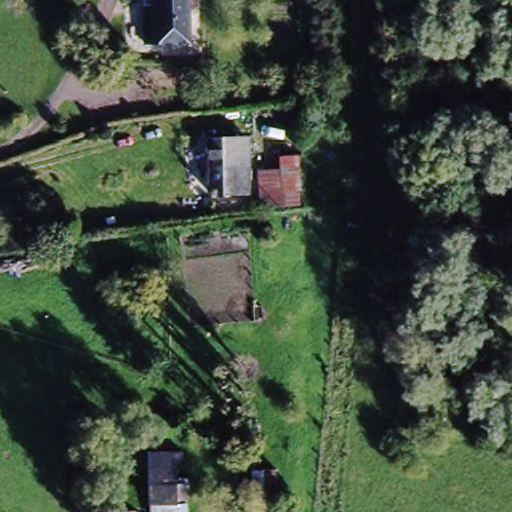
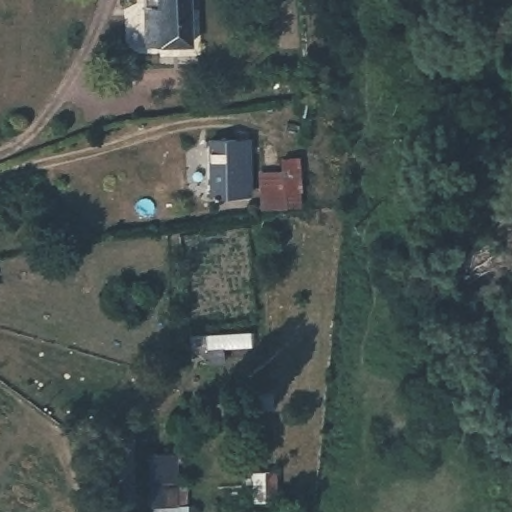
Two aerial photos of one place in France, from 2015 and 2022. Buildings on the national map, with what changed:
unchanged [(146,0),(193,0),(193,39),(147,40),(132,40),(131,0),(146,0)]
unchanged [(248,197),(205,201),(204,173),(207,172),(203,150),(243,147),(245,171),(248,171),(248,197)]
unchanged [(147,455),(172,456),(177,485),(186,485),(188,512),(149,512),(147,455)]

